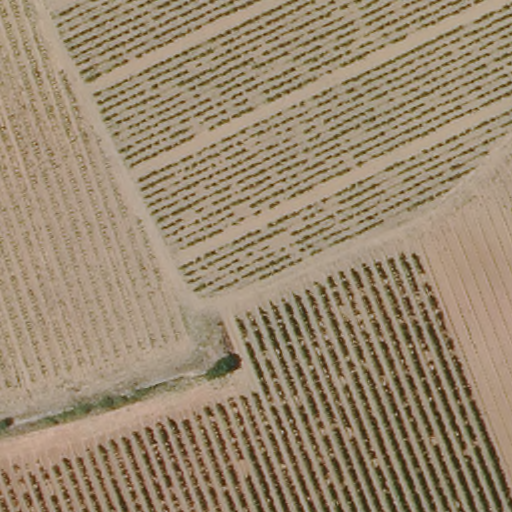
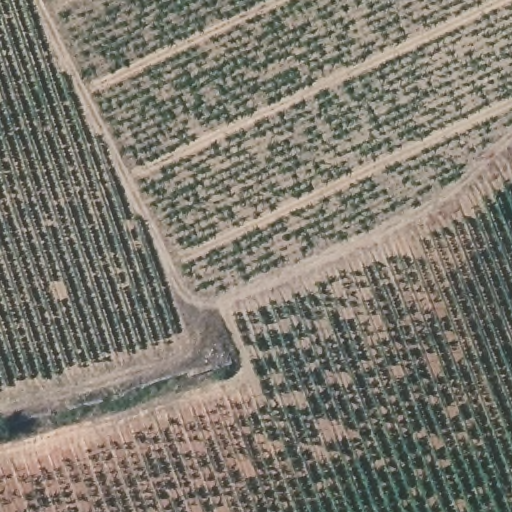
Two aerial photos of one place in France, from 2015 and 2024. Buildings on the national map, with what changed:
unchanged [(217,372),(236,365),(245,385),(225,393),(217,372)]

